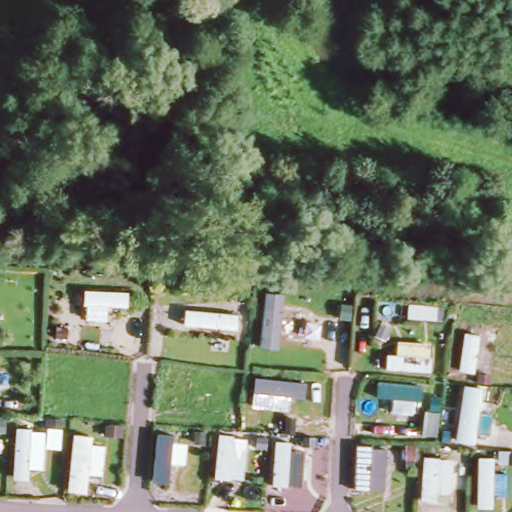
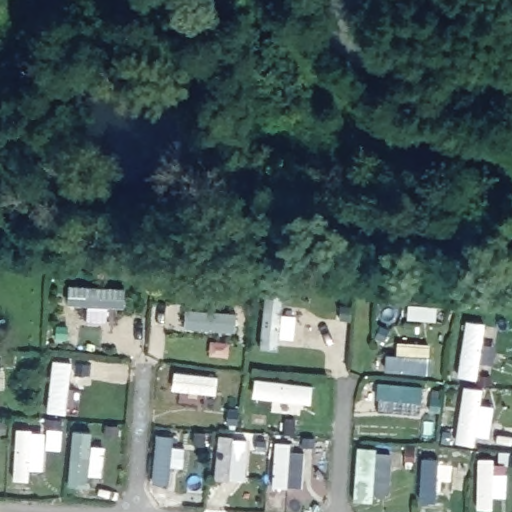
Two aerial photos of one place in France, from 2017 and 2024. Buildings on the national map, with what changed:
unchanged [(70,439),(76,439),(73,422),(83,422),(84,437),(92,437),(92,448),(102,448),(103,474),(89,475),(87,494),(67,493),(70,439)]

